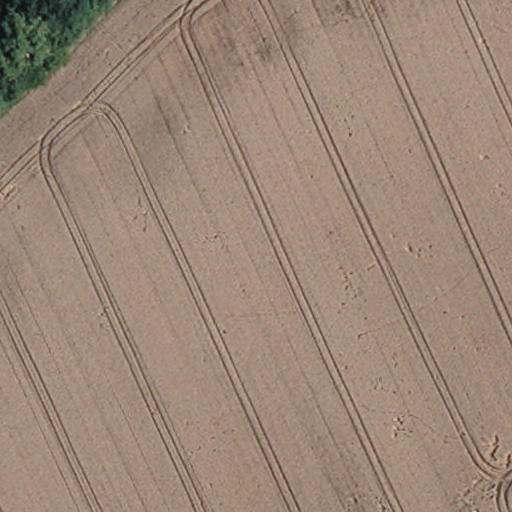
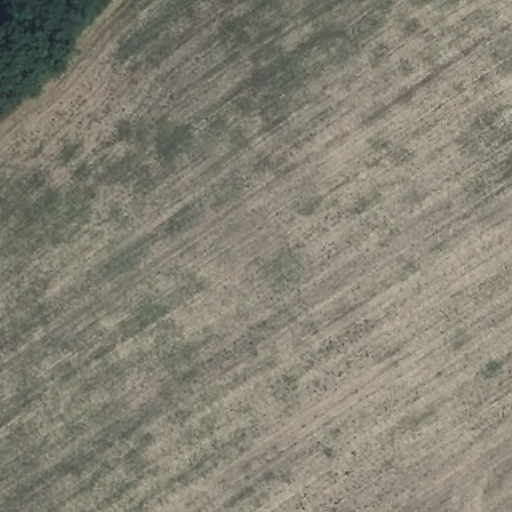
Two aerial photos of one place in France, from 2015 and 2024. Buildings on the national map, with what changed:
[]

